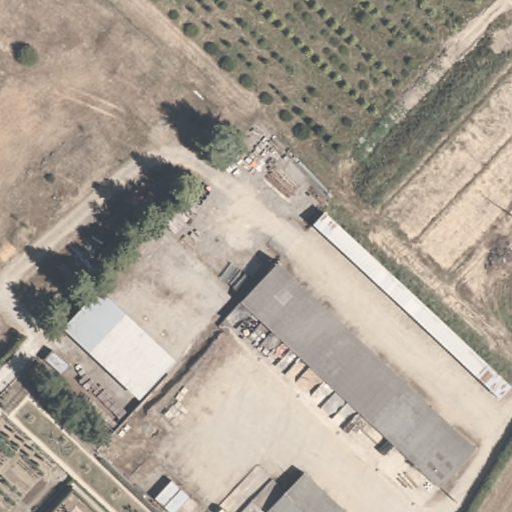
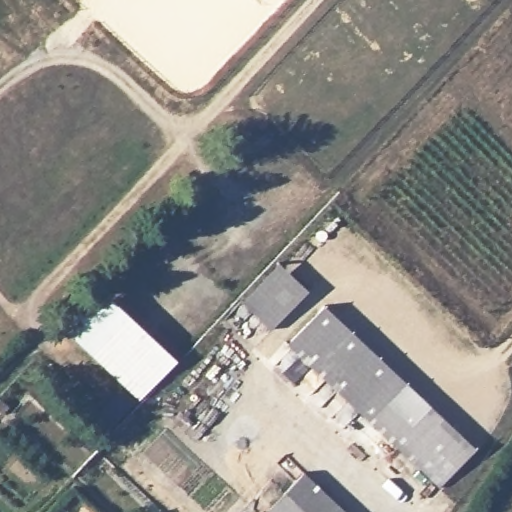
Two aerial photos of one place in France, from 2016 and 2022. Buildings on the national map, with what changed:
unchanged [(477,446),(439,487),(350,403),(242,300),(280,259),(477,446)]
unchanged [(176,360),(140,400),(67,332),(103,292),(176,360)]
unchanged [(305,470),(347,512),(266,512),(305,470)]

